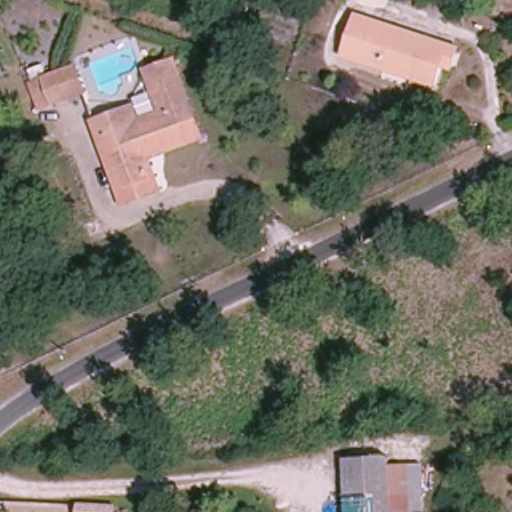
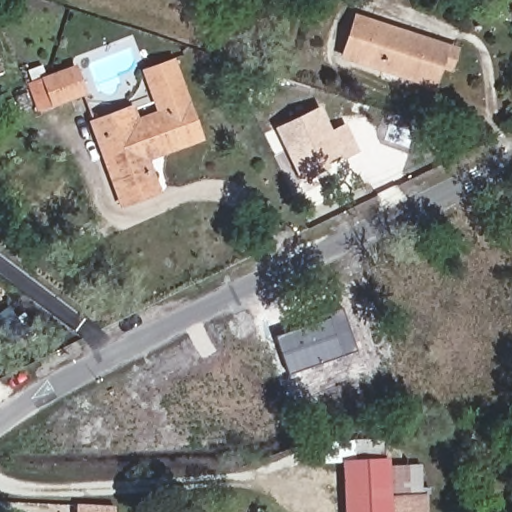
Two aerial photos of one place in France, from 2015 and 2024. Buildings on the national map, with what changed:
unchanged [(450,74),(437,70),(428,93),(339,60),(357,14),(445,48),(457,54),(450,74)]
unchanged [(35,83),(47,77),(80,63),(90,91),(59,103),(44,109),(35,83)]
unchanged [(127,190),(106,139),(97,144),(91,126),(137,108),(145,124),(163,115),(147,74),(170,64),(200,136),(153,156),(162,177),(127,190)]
new [(333,131),(347,125),(360,151),(300,180),(275,128),(321,105),(333,131)]
unchanged [(167,188),(124,206),(97,144),(106,139),(127,190),(162,177),(167,188)]
new [(276,336),(303,326),(301,320),(342,306),(357,350),(287,375),(276,336)]
unchanged [(343,512),(345,455),(387,455),(387,512),(343,512)]
new [(422,486),(427,486),(427,512),(387,512),(387,466),(422,463),(422,486)]
unchanged [(117,505),(116,512),(82,512),(83,503),(117,505)]

